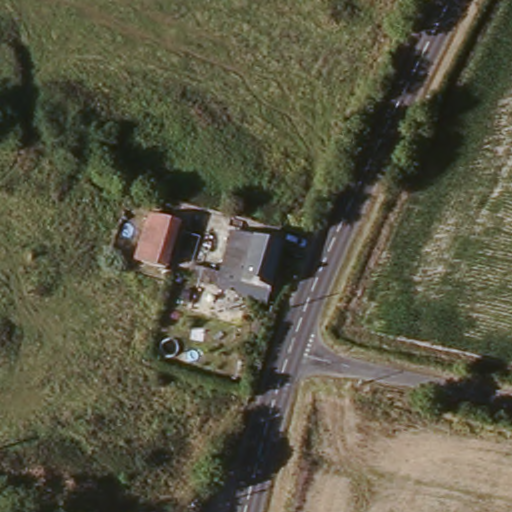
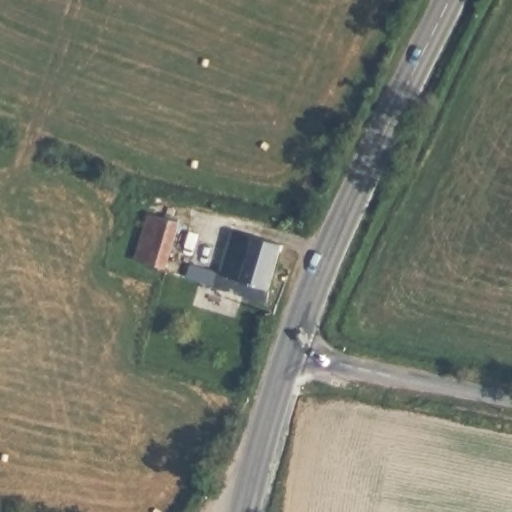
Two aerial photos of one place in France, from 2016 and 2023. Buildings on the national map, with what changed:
unchanged [(169,268),(141,260),(153,219),(155,211),(163,214),(162,222),(182,227),(169,268)]
unchanged [(283,245),(267,302),(187,279),(192,267),(223,274),(236,232),(283,245)]

